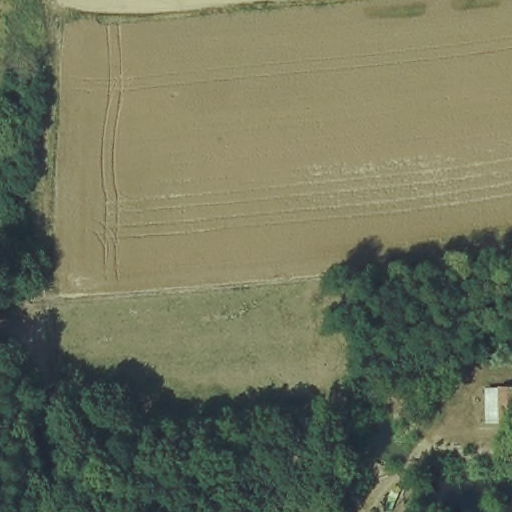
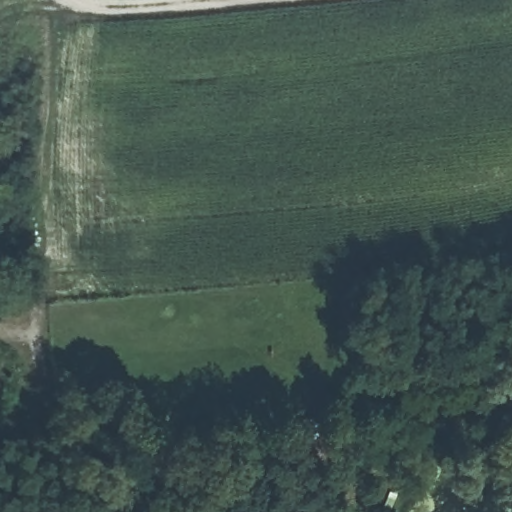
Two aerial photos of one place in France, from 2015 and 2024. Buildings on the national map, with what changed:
unchanged [(505,416),(502,389),(512,389),(512,416),(505,416)]

